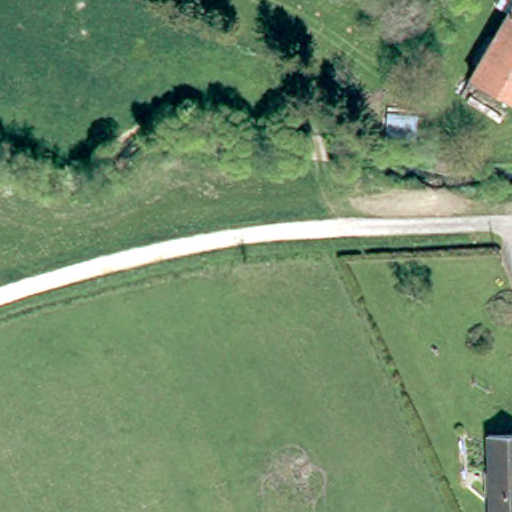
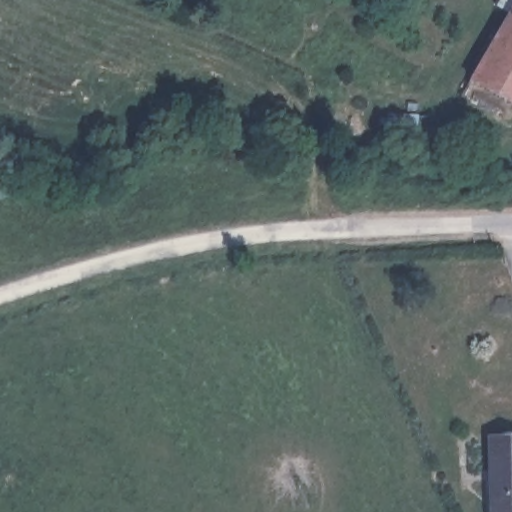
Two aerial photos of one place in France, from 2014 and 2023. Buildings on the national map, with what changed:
unchanged [(473,85),(510,20),(497,12),(505,0),(512,0),(512,106),(473,85)]
unchanged [(379,106),(408,109),(405,137),(375,133),(379,106)]
unchanged [(512,430),(512,512),(493,512),(489,431),(512,430)]

